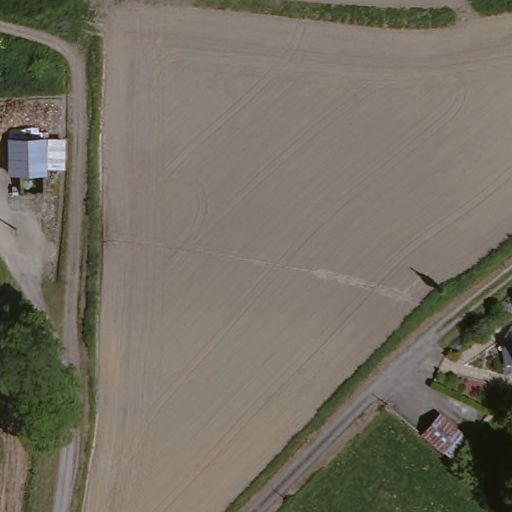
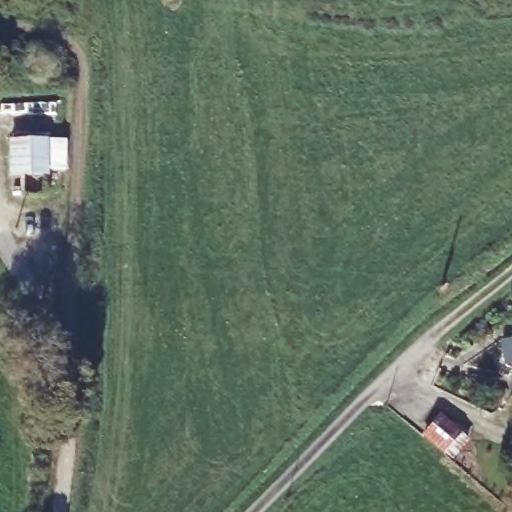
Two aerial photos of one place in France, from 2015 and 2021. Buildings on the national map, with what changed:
unchanged [(33,2),(13,1),(14,0),(34,0),(33,2)]
unchanged [(43,177),(21,177),(14,178),(14,141),(42,141),(43,177)]
unchanged [(480,431),(451,464),(425,443),(456,409),(480,431)]

